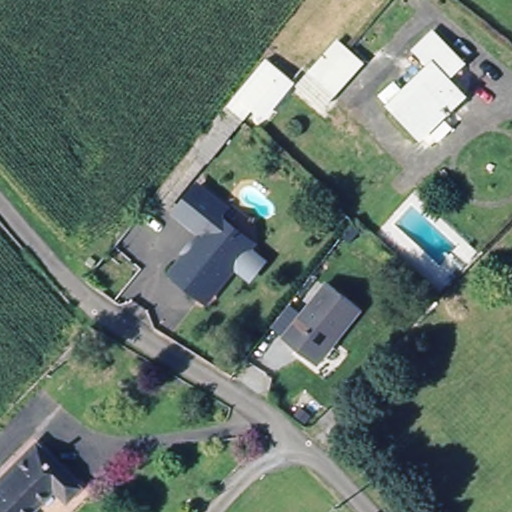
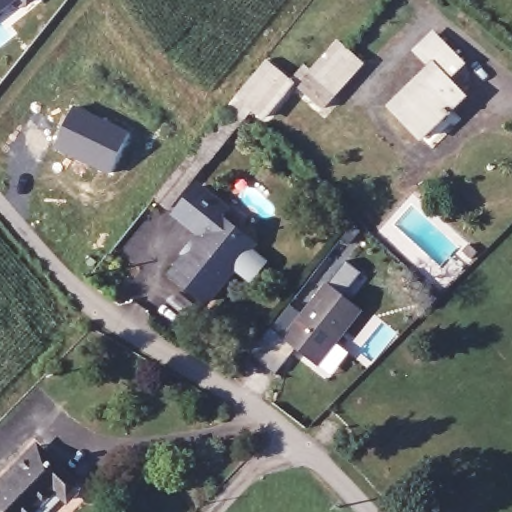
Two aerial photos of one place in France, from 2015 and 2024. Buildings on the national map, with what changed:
new [(4,0),(0,4),(0,0),(4,0)]
unchanged [(290,75),(331,35),(367,67),(325,109),(298,89),(263,124),(250,116),(170,210),(151,197),(265,57),(290,75)]
unchanged [(390,115),(426,72),(410,58),(426,39),(454,68),(441,85),(459,103),(423,144),(390,115)]
new [(74,105),(130,132),(109,174),(54,147),(74,105)]
unchanged [(165,276),(197,235),(173,216),(200,182),(232,209),(224,222),(257,245),(254,251),(267,262),(252,285),(234,270),(207,307),(165,276)]
new [(349,226),(357,232),(350,241),(342,235),(349,226)]
new [(398,272),(403,266),(414,276),(434,293),(422,306),(403,290),(409,282),(398,272)]
unchanged [(299,317),(329,280),(363,306),(319,362),(284,336),(271,326),(287,308),(299,317)]
unchanged [(80,487),(69,501),(51,485),(25,512),(0,512),(0,478),(34,442),(80,487)]

